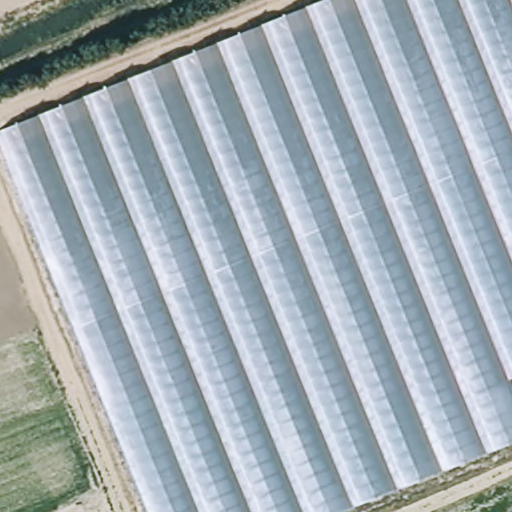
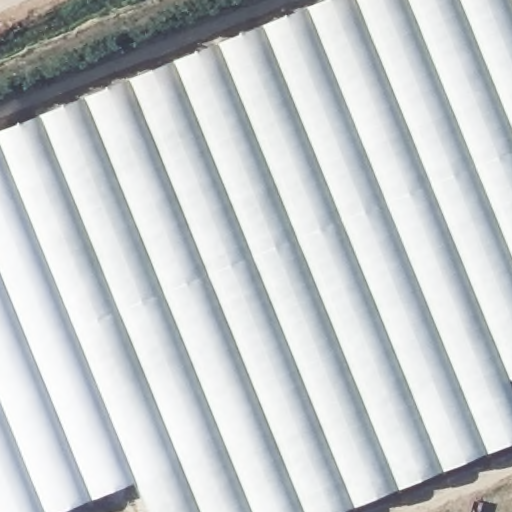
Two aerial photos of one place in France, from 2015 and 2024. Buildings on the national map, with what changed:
unchanged [(512,390),(512,442),(339,512),(148,512),(137,485),(0,147),(0,132),(329,0),(512,0),(512,377),(508,379),(512,390)]
new [(69,512),(0,512),(0,147),(137,485),(69,512)]

